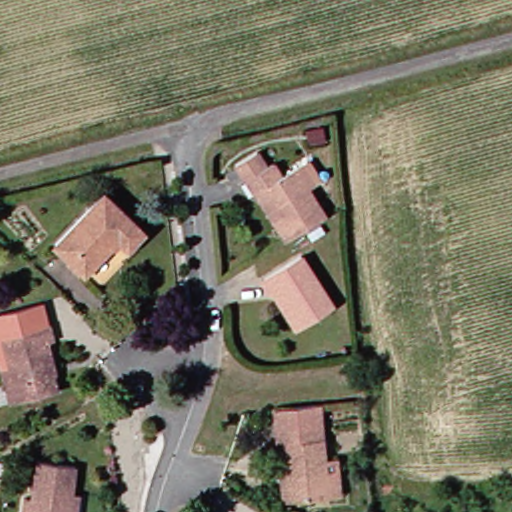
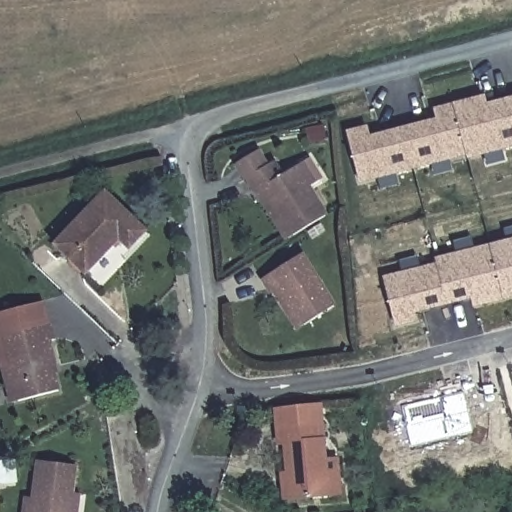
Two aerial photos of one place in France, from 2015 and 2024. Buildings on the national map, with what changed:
new [(368,133),(443,114),(441,107),(485,95),(488,101),(512,95),(512,147),(498,151),(501,163),(487,166),(485,156),(475,159),(473,154),(360,184),(347,134),(367,129),(368,133)]
unchanged [(253,178),(248,181),(238,166),(262,150),(271,164),(277,161),(286,176),(310,161),(324,182),(316,187),(331,211),(299,232),(291,237),(263,193),(253,178)]
unchanged [(61,239),(112,187),(154,227),(138,244),(127,235),(91,270),(61,239)]
new [(507,240),(504,229),(512,227),(512,299),(474,308),(472,300),(414,315),(416,323),(397,328),(384,277),(403,272),(400,262),(415,258),(418,268),(437,263),(436,258),(507,240)]
unchanged [(279,288),(274,291),(264,275),(303,251),(337,306),(311,323),(304,328),(279,288)]
unchanged [(0,341),(0,335),(18,331),(16,322),(11,302),(43,294),(47,315),(50,314),(54,335),(46,337),(51,357),(48,359),(56,384),(14,396),(0,341)]
unchanged [(159,309),(149,320),(141,312),(153,301),(159,309)]
unchanged [(16,322),(18,331),(0,335),(0,304),(11,302),(16,322)]
unchanged [(14,396),(7,397),(0,371),(0,341),(14,396)]
unchanged [(330,455),(339,456),(342,492),(287,496),(285,469),(294,469),(291,446),(282,445),(279,407),(323,402),(330,455)]
unchanged [(23,512),(26,496),(32,498),(38,460),(79,466),(74,494),(84,496),(81,512),(23,512)]

